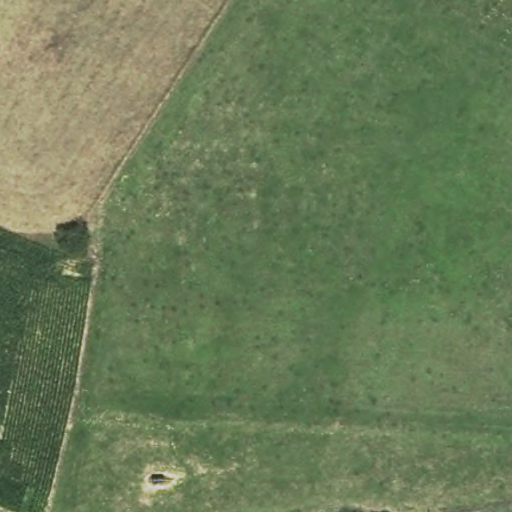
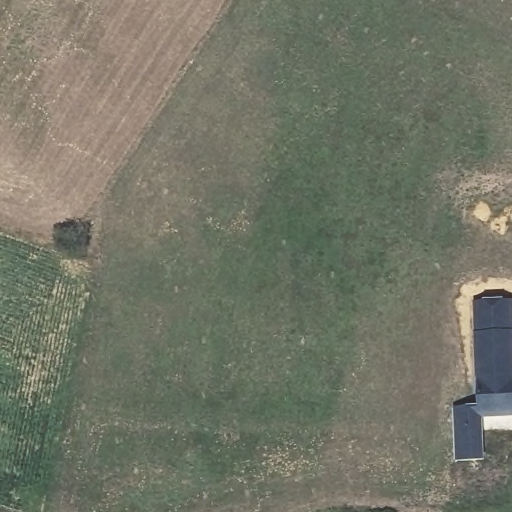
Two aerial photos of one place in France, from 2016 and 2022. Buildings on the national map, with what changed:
new [(462,462),(458,427),(457,411),(482,408),(472,302),(511,298),(512,313),(512,414),(485,417),(485,425),(488,460),(462,462)]

